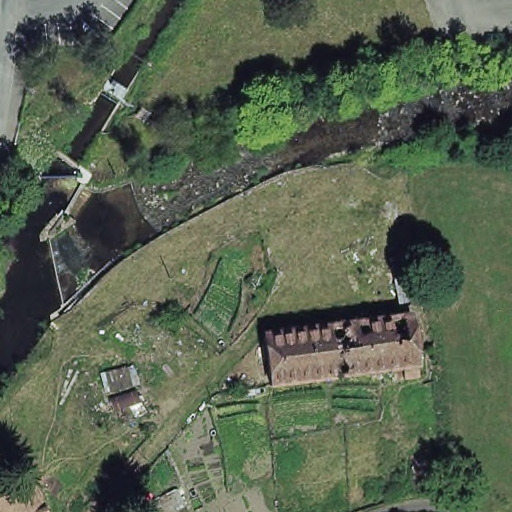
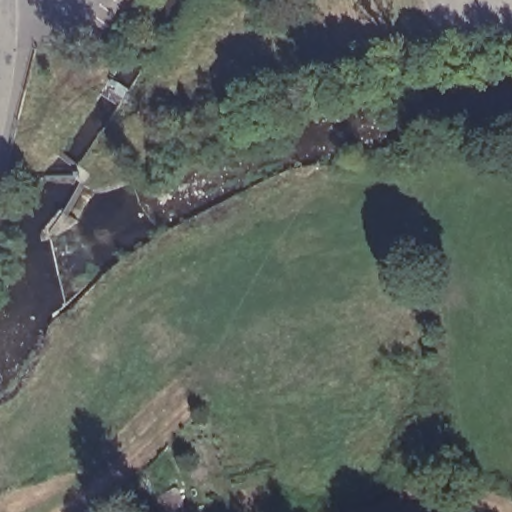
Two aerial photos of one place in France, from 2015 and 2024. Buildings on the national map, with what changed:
demolished [(411,383),(409,371),(277,389),(271,339),(416,320),(422,369),(424,381),(411,383)]
demolished [(46,512),(0,512),(0,502),(36,488),(46,512)]

